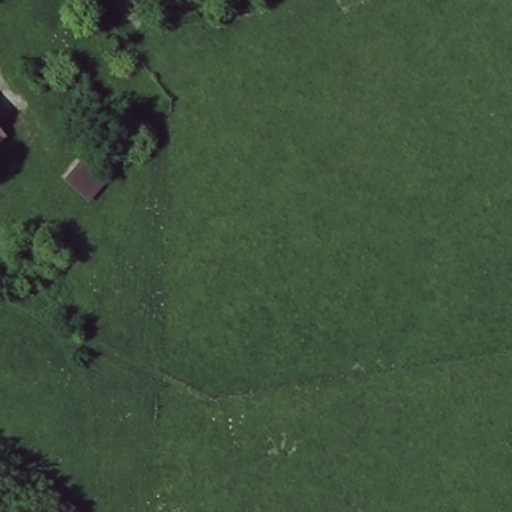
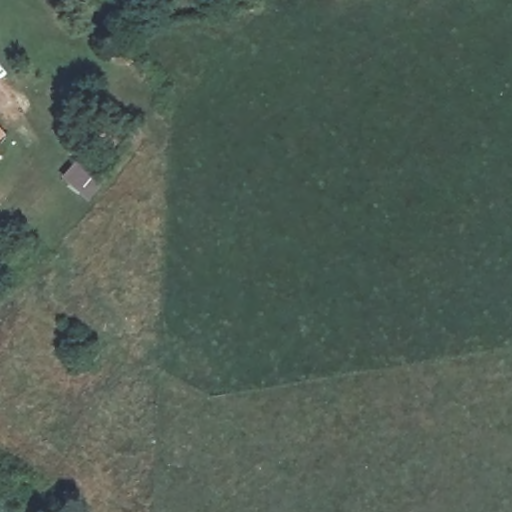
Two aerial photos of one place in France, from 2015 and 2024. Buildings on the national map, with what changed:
unchanged [(0,124),(8,132),(0,139),(0,124)]

